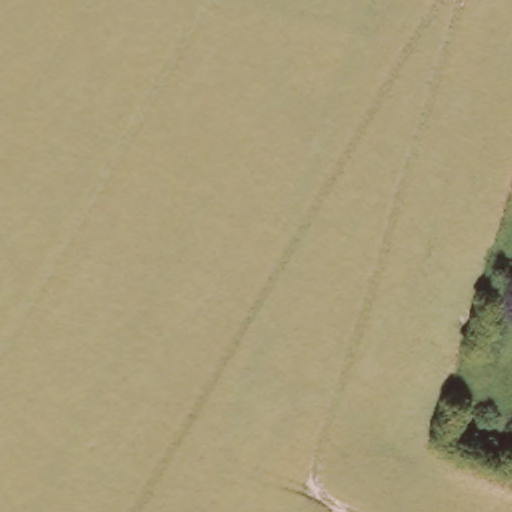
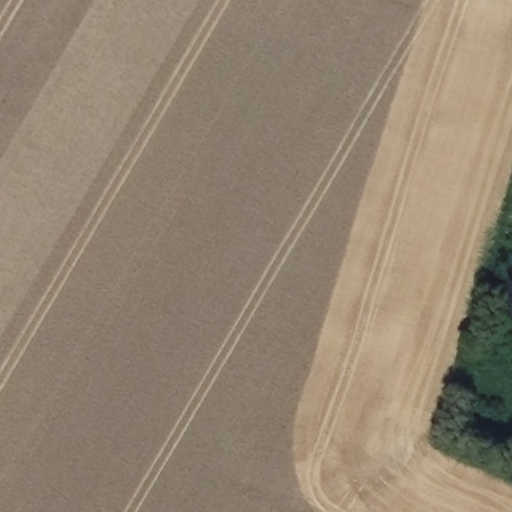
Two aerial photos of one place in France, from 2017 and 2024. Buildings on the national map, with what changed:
unchanged [(457,408),(472,414),(467,430),(451,425),(457,408)]

